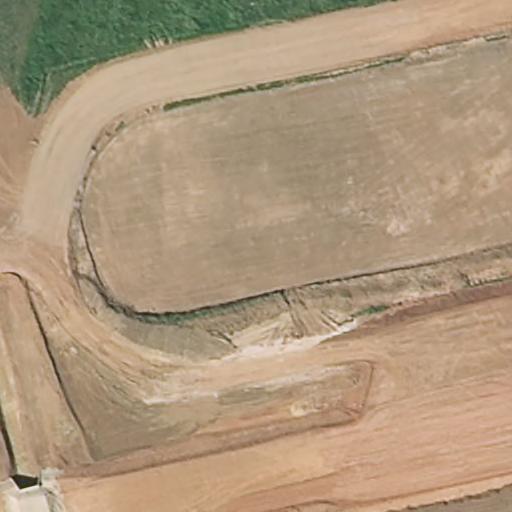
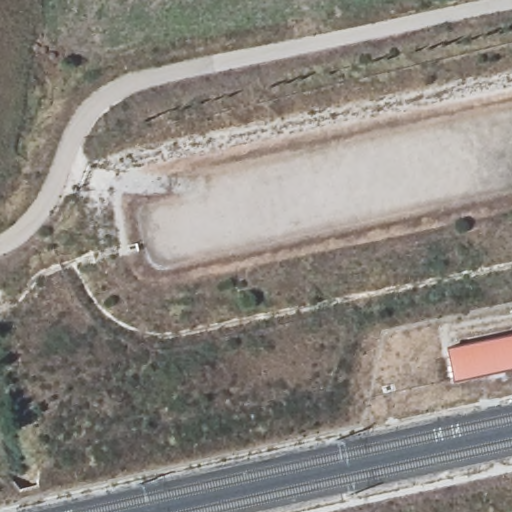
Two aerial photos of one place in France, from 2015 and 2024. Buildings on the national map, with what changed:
new [(445,351),(512,335),(512,370),(452,383),(445,351)]

